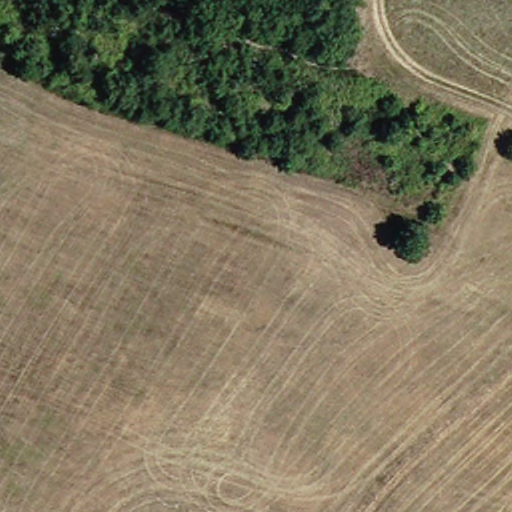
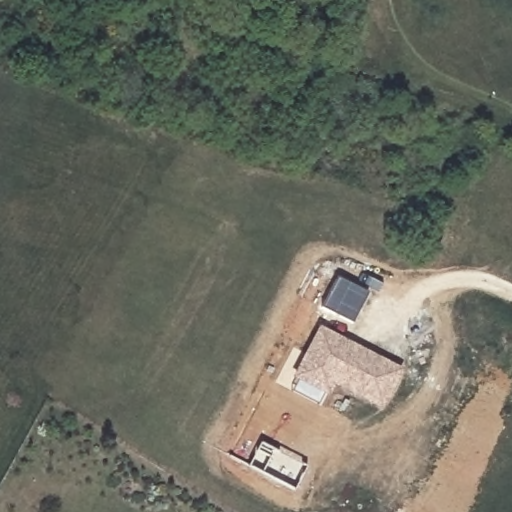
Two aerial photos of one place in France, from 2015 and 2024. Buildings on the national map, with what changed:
new [(353,322),(323,306),(339,277),(368,293),(353,322)]
new [(344,340),(355,346),(401,368),(383,405),(335,381),(329,391),(297,375),(321,328),(344,340)]

